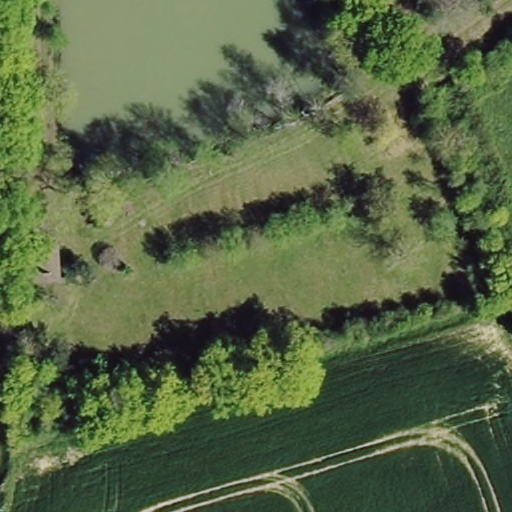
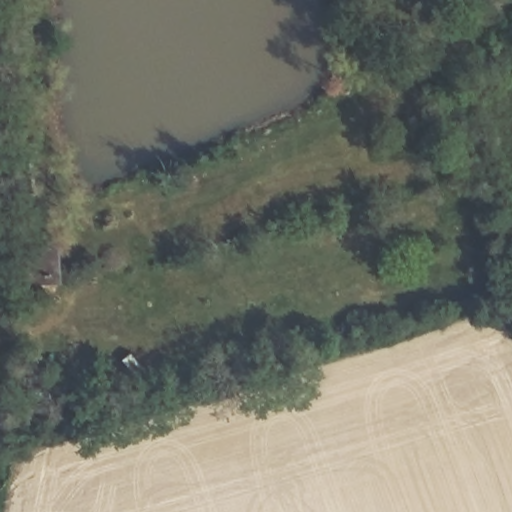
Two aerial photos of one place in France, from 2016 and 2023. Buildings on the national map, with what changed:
unchanged [(4,208),(50,204),(53,234),(5,238),(4,208)]

